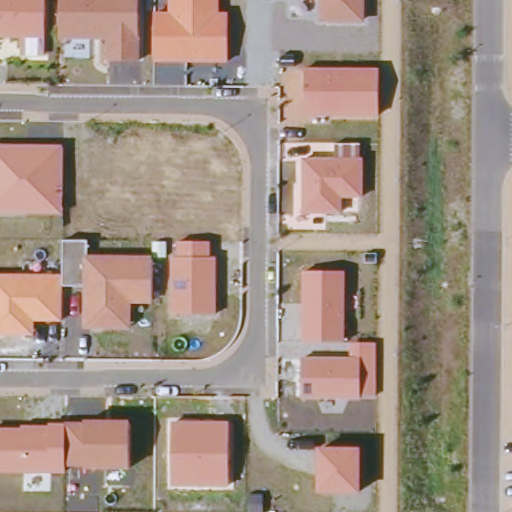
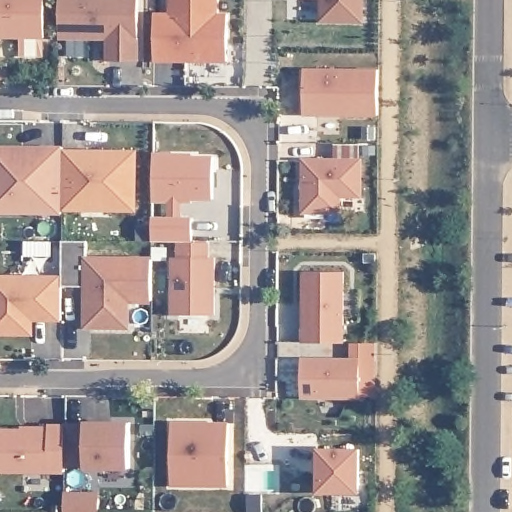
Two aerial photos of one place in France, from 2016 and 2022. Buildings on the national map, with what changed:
unchanged [(21,55),(21,37),(0,36),(0,0),(47,0),(46,57),(21,55)]
unchanged [(105,58),(105,38),(60,38),(61,0),(140,0),(140,59),(105,58)]
unchanged [(228,13),(228,62),(154,61),(155,11),(169,11),(169,0),(219,0),(219,13),(228,13)]
unchanged [(319,19),(319,0),(365,0),(366,20),(319,19)]
unchanged [(378,71),(378,119),(304,118),(304,69),(378,71)]
unchanged [(334,157),(334,143),(360,144),(360,158),(363,158),(363,197),(342,196),(342,212),(301,212),(302,159),(334,157)]
unchanged [(63,214),(0,213),(0,146),(63,146),(63,214)]
new [(63,208),(63,148),(136,149),(136,209),(63,208)]
new [(183,200),(183,215),(194,216),(194,239),(154,239),(154,214),(168,214),(168,203),(154,203),(154,151),(193,151),(193,154),(212,154),(212,199),(183,200)]
unchanged [(86,239),(86,255),(151,257),(151,303),(131,303),(131,330),(83,329),(83,285),(62,285),(63,275),(63,239),(86,239)]
unchanged [(211,243),(211,257),(216,258),(217,314),(171,314),(171,257),(177,257),(178,242),(211,243)]
unchanged [(345,273),(345,340),(303,341),(303,272),(345,273)]
unchanged [(62,285),(62,322),(35,322),(35,337),(0,337),(0,275),(63,275),(62,285)]
unchanged [(351,357),(351,343),(376,343),(376,394),(359,394),(359,401),(301,399),(301,357),(351,357)]
unchanged [(22,424),(50,424),(50,423),(64,424),(64,423),(86,423),(86,419),(131,421),(130,469),(83,468),(83,466),(64,465),(63,473),(0,471),(0,427),(21,427),(22,424)]
unchanged [(228,422),(228,487),(171,486),(171,421),(228,422)]
unchanged [(359,448),(359,492),(317,491),(318,449),(359,448)]

